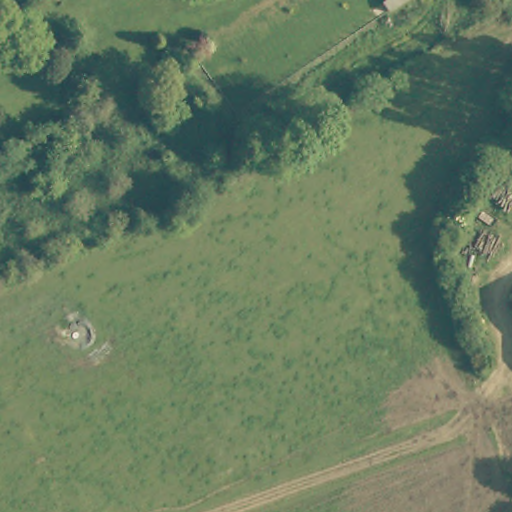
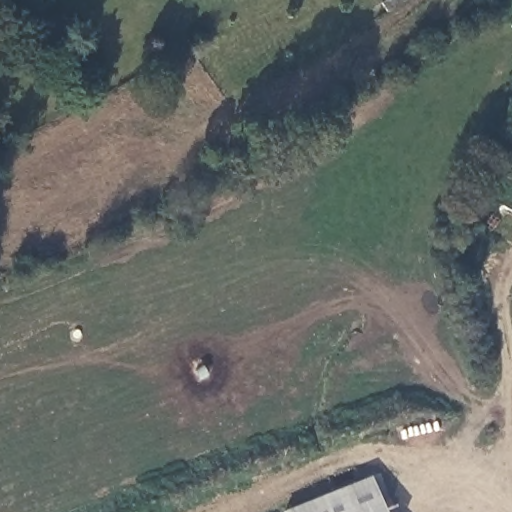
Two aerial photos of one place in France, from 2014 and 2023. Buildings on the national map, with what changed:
unchanged [(384,0),(385,0),(409,0),(392,12),(384,0)]
demolished [(390,14),(365,31),(357,20),(383,2),(390,14)]
new [(284,510),(371,475),(386,512),(285,512),(284,510)]

